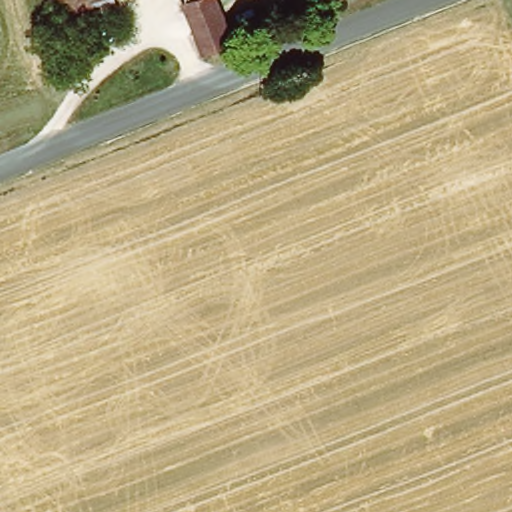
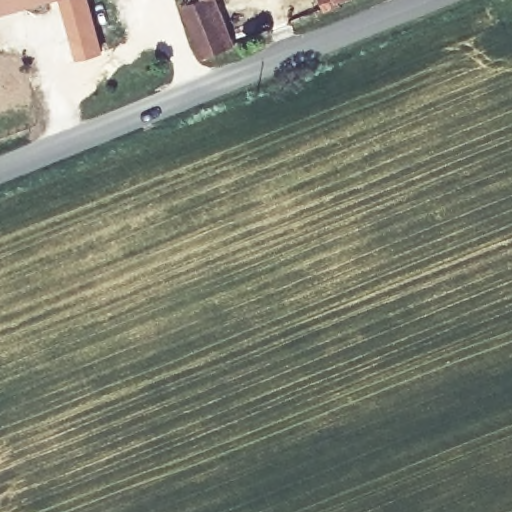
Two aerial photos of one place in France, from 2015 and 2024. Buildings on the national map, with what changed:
new [(0,13),(0,0),(48,0),(0,13)]
demolished [(103,54),(75,62),(57,0),(87,0),(103,54)]
new [(120,24),(97,30),(105,52),(76,59),(59,0),(113,0),(120,24)]
unchanged [(233,45),(199,58),(178,5),(176,0),(215,0),(233,45)]
unchanged [(320,2),(319,0),(325,0),(320,2)]

